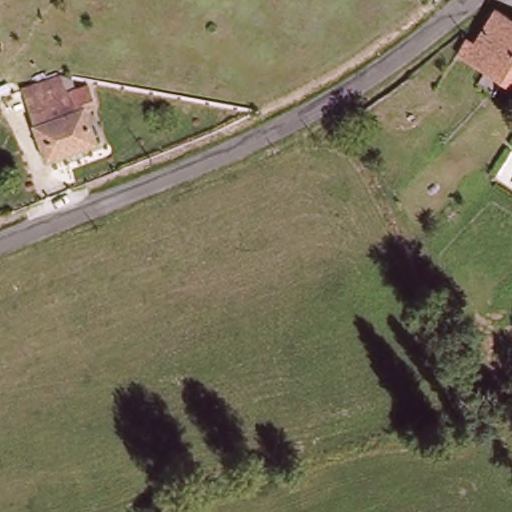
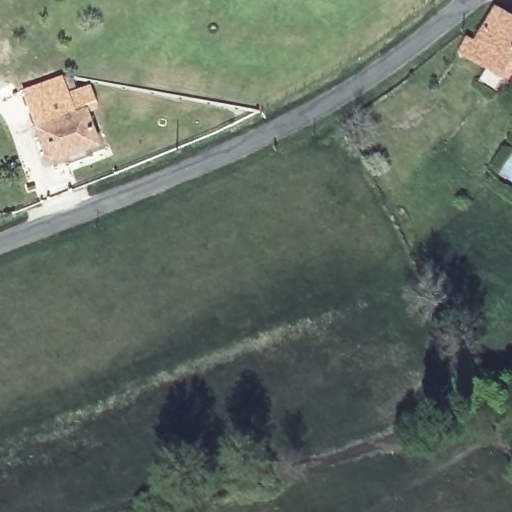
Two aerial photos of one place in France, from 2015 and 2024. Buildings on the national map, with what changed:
unchanged [(512,26),(512,91),(466,60),(474,45),(482,45),(499,17),(512,26)]
unchanged [(90,90),(95,112),(86,115),(97,150),(49,169),(30,115),(90,90)]

